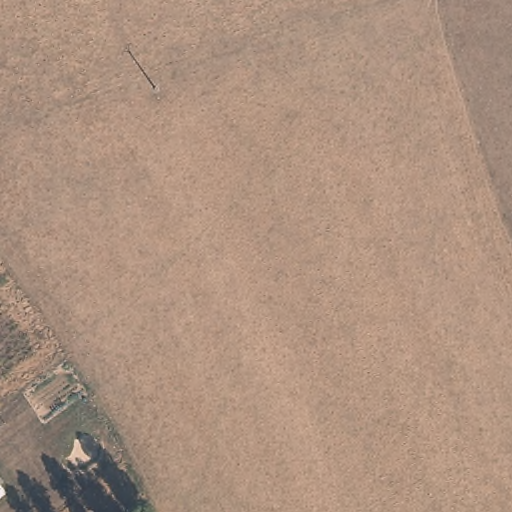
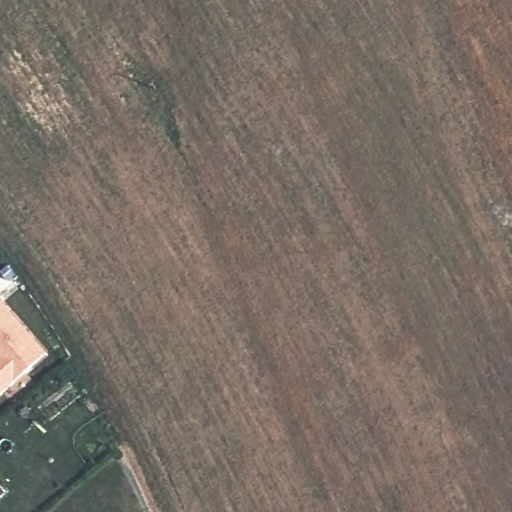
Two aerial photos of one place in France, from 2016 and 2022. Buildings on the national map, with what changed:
new [(1,395),(0,394),(0,299),(47,354),(1,395)]

